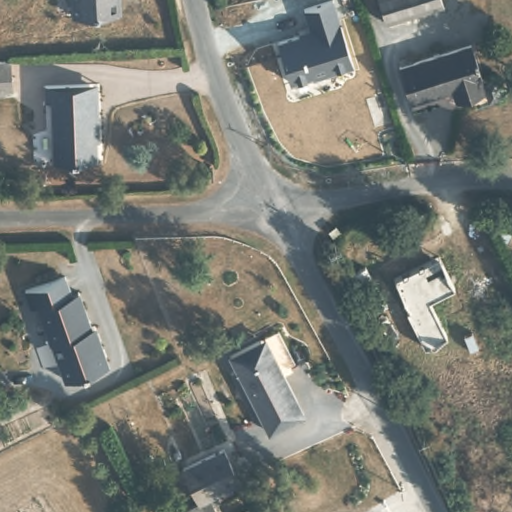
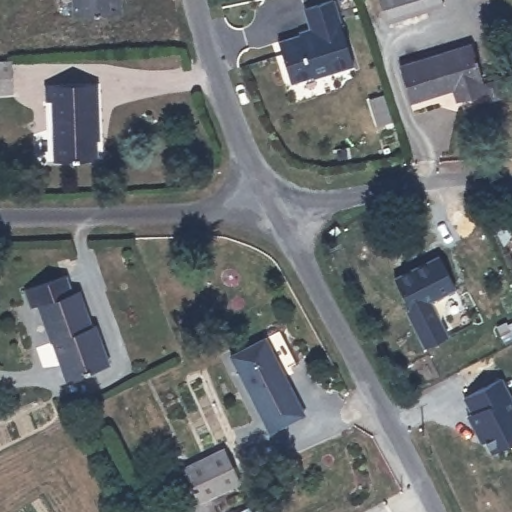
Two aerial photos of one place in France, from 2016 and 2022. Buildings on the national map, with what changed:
unchanged [(77,20),(75,0),(119,0),(120,18),(77,20)]
unchanged [(291,83),(278,40),(308,31),(302,9),(332,0),(334,0),(352,65),(291,83)]
unchanged [(385,21),(378,0),(440,0),(441,3),(385,21)]
unchanged [(485,79),(480,81),(484,94),(458,103),(452,89),(410,103),(398,68),(472,44),(485,79)]
unchanged [(17,86),(0,88),(0,58),(14,57),(17,86)]
unchanged [(92,93),(97,93),(103,155),(57,158),(52,97),(45,96),(44,79),(90,76),(92,93)]
unchanged [(424,346),(406,310),(407,307),(393,278),(437,255),(456,290),(432,302),(448,335),(424,346)]
unchanged [(69,383),(58,344),(52,347),(40,309),(35,310),(29,293),(68,281),(73,299),(82,297),(92,331),(98,329),(111,369),(69,383)]
unchanged [(281,374),(285,371),(306,412),(266,431),(232,359),(265,344),(281,374)]
new [(492,451),(486,440),(481,442),(467,414),(473,411),(465,397),(502,379),(512,397),(512,440),(492,451)]
unchanged [(237,482),(206,497),(214,512),(200,512),(178,468),(220,448),(237,482)]
unchanged [(258,494),(268,512),(227,512),(258,494)]

